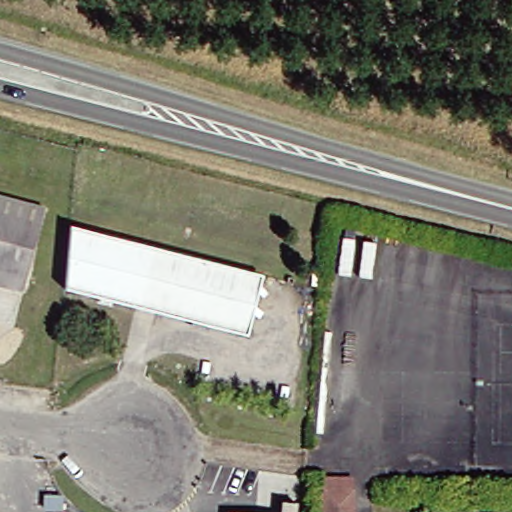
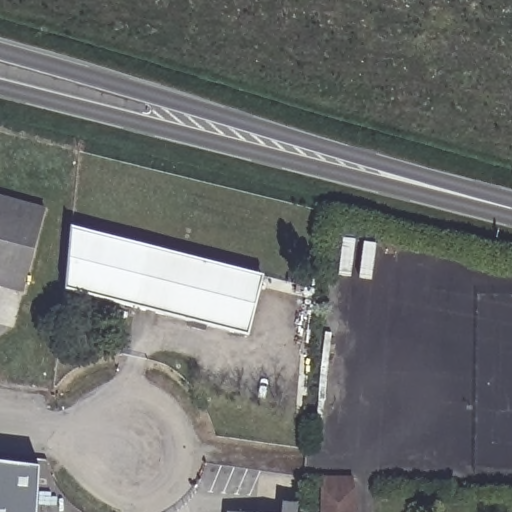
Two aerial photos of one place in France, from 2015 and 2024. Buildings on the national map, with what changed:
unchanged [(22,285),(0,279),(0,192),(45,205),(22,285)]
unchanged [(249,333),(234,329),(64,282),(68,217),(254,267),(269,271),(249,333)]
new [(35,512),(0,512),(0,465),(38,470),(35,512)]
unchanged [(358,512),(328,512),(328,483),(328,476),(357,476),(358,482),(358,512)]
unchanged [(287,500),(299,500),(299,512),(286,512),(287,500)]

